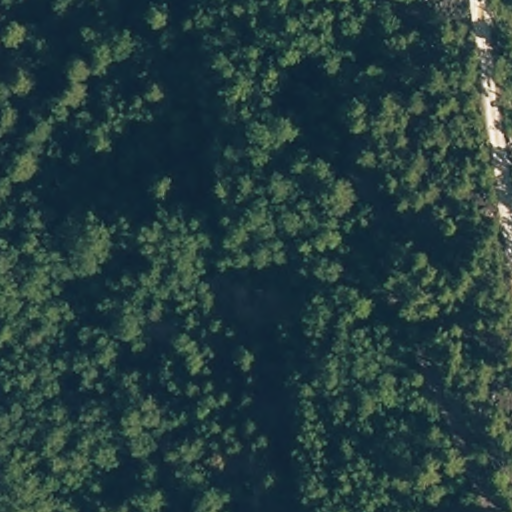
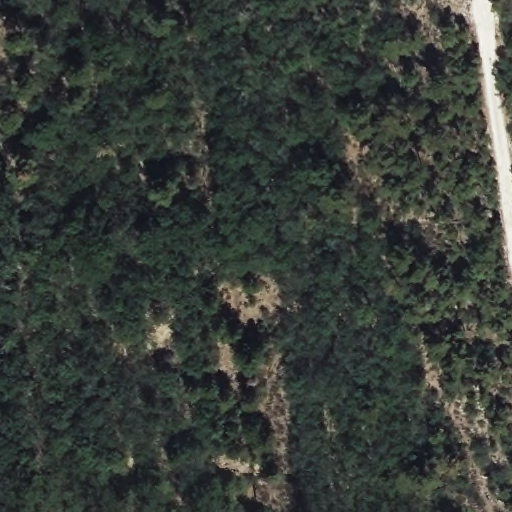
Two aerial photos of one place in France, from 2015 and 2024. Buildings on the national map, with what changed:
[]

